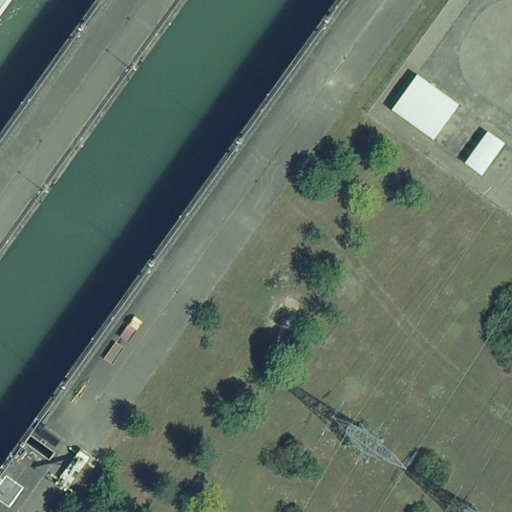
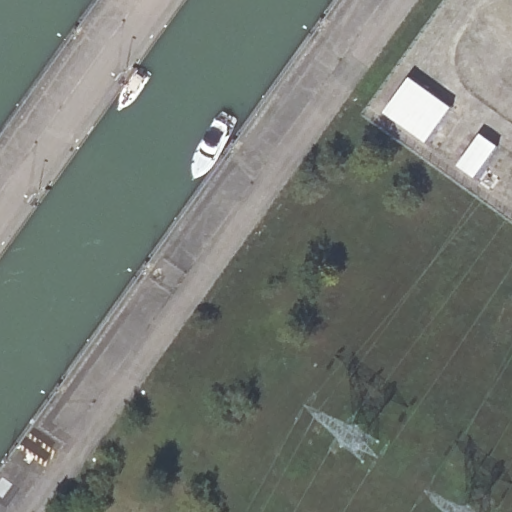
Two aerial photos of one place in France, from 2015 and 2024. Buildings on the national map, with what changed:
unchanged [(391,115),(418,78),(460,108),(434,146),(391,115)]

